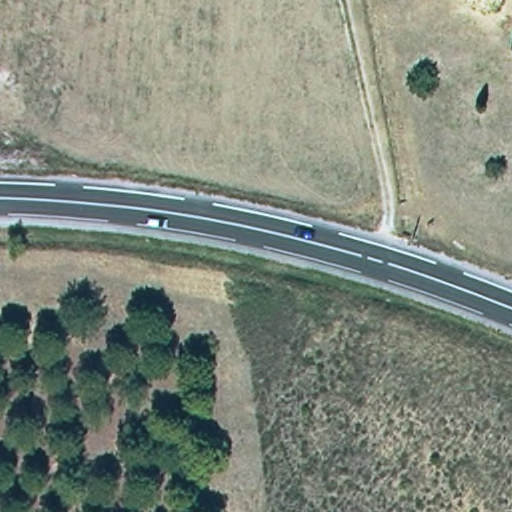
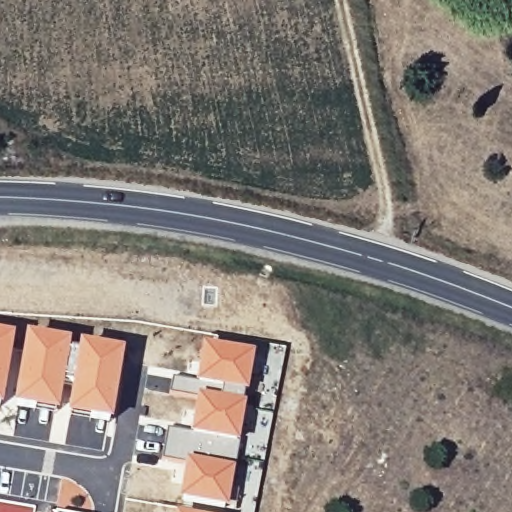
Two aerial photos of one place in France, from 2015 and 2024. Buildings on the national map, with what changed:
new [(0,413),(0,338),(12,340),(0,413)]
new [(110,428),(11,411),(25,340),(121,356),(110,428)]
new [(226,509),(178,500),(185,465),(161,460),(167,430),(190,433),(196,400),(169,394),(172,379),(195,382),(202,347),(252,356),(226,509)]
new [(35,507),(34,512),(0,512),(0,501),(35,507)]

